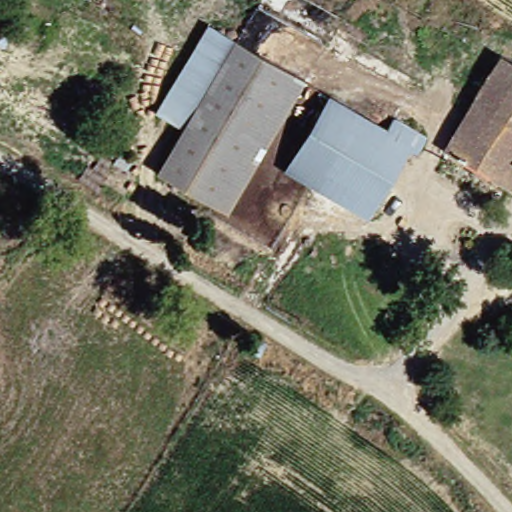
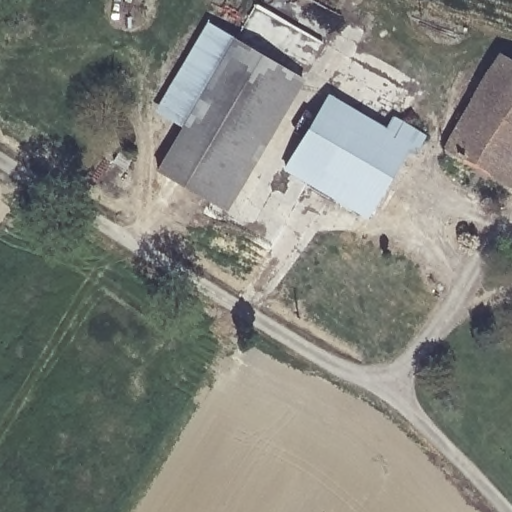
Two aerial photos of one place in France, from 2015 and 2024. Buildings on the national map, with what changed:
unchanged [(305,77),(226,207),(159,169),(184,122),(157,107),(207,18),(305,77)]
unchanged [(445,144),(451,134),(448,132),(492,50),(512,62),(512,187),(445,144)]
unchanged [(290,173),(329,94),(385,121),(394,102),(426,119),(416,136),(408,133),(386,179),(393,184),(377,217),(290,173)]

